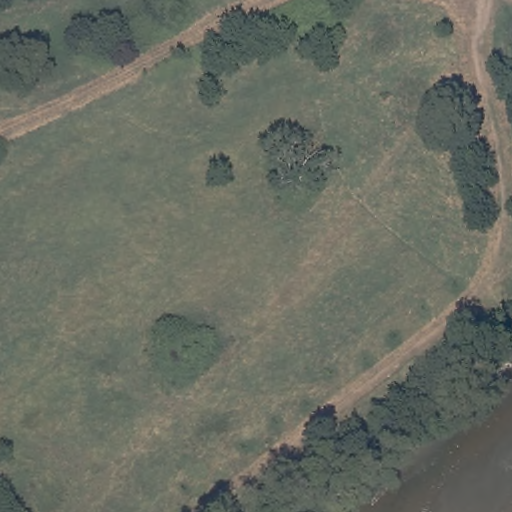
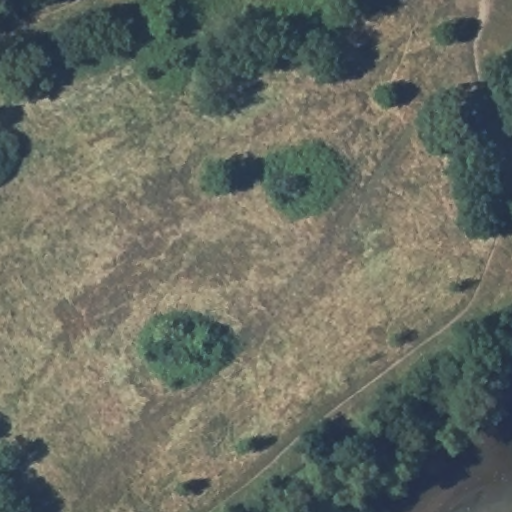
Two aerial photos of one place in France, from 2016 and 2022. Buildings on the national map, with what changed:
unchanged [(288,0),(308,0),(311,5),(271,22),(265,10),(288,0)]

